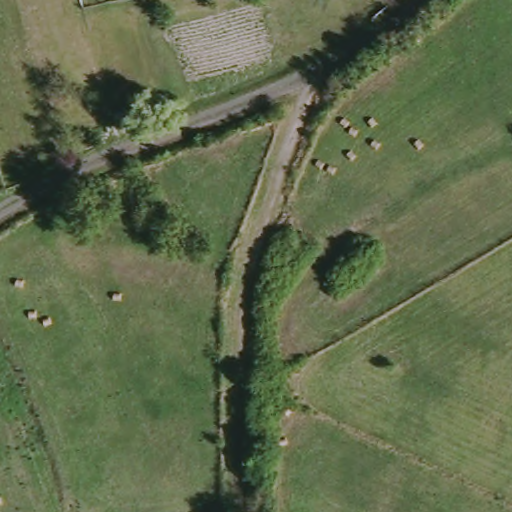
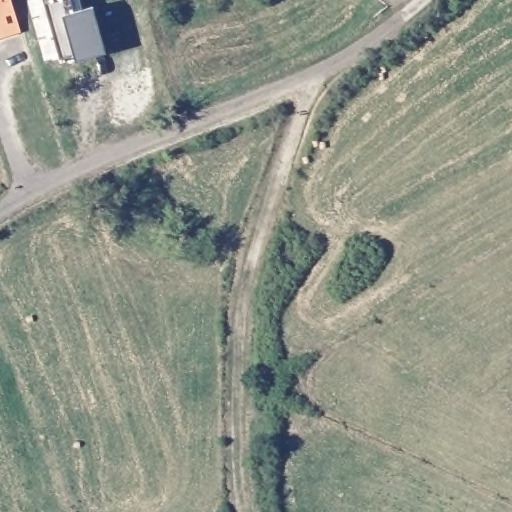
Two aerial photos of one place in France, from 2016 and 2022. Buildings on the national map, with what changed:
new [(0,37),(0,0),(11,0),(20,31),(0,37)]
new [(71,0),(75,12),(93,8),(106,53),(76,60),(74,55),(60,58),(44,0),(71,0)]

